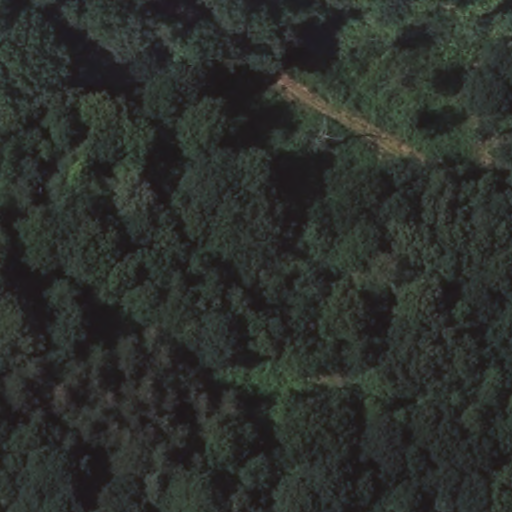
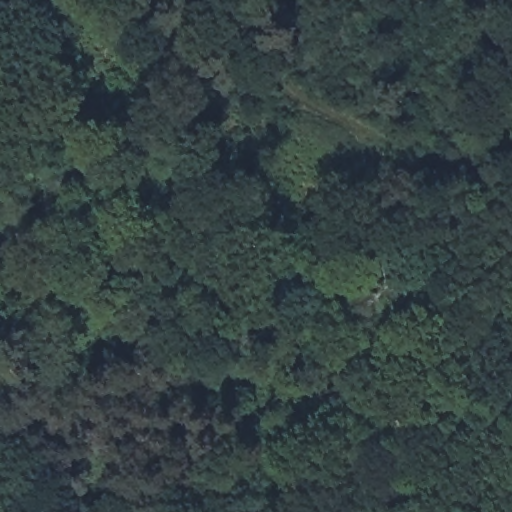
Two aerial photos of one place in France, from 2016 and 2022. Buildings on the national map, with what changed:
[]

